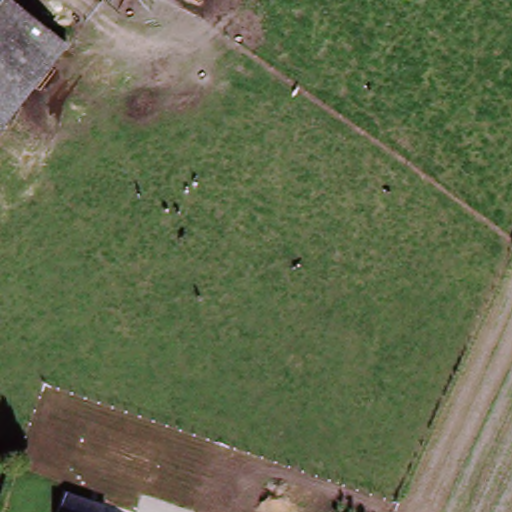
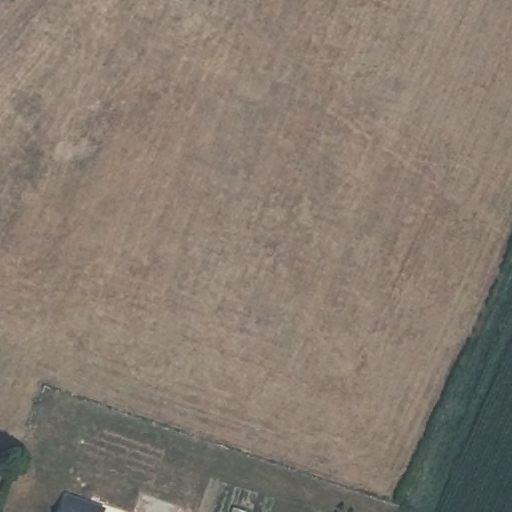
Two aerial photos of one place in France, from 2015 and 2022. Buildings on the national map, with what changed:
demolished [(0,136),(0,0),(4,0),(65,42),(0,136)]
new [(107,512),(62,512),(69,494),(108,508),(107,512)]

